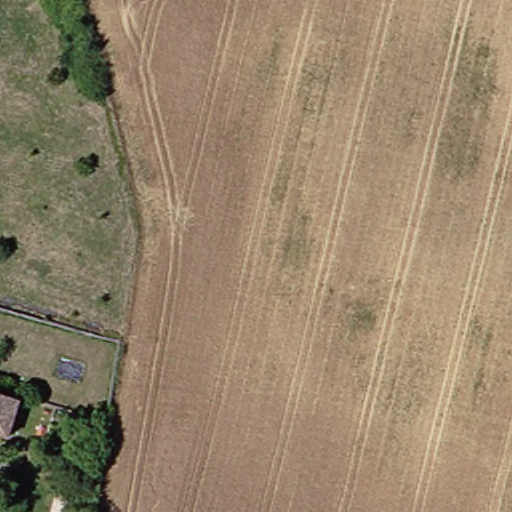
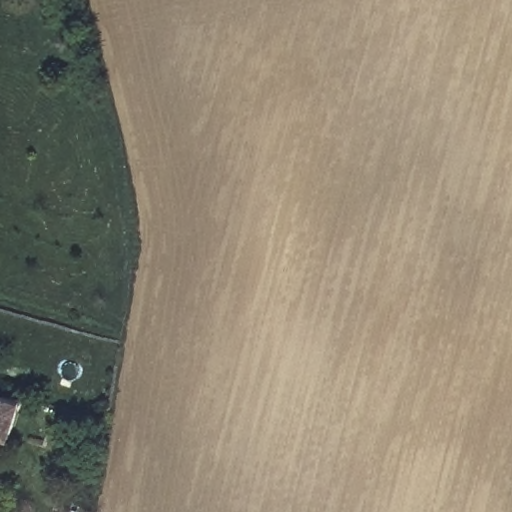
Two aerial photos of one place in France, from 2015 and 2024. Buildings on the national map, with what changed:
unchanged [(0,400),(11,403),(4,433),(0,432),(0,400)]

